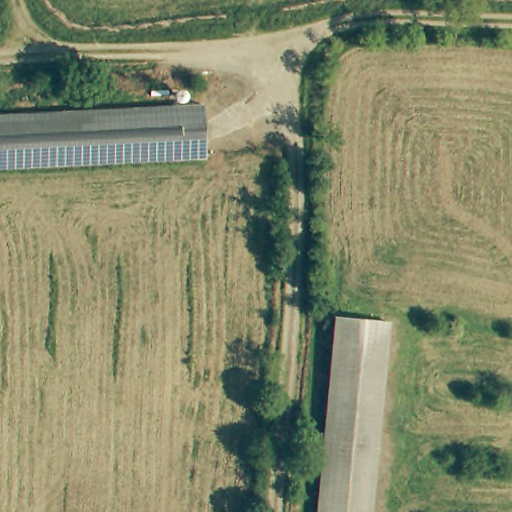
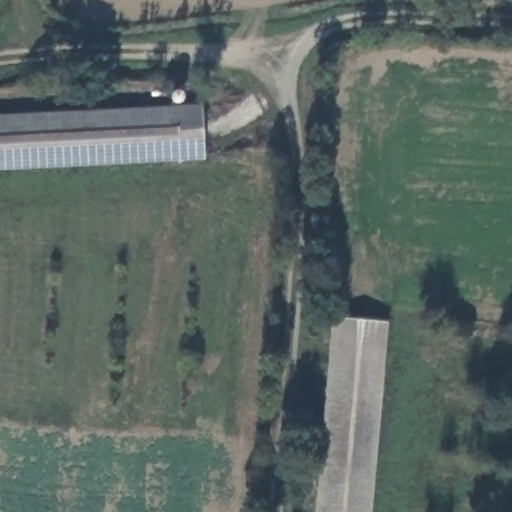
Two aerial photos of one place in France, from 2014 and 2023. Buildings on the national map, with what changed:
unchanged [(0,159),(0,107),(207,104),(207,119),(208,141),(208,156),(0,159)]
unchanged [(330,318),(378,323),(359,512),(311,512),(324,383),(330,318)]

